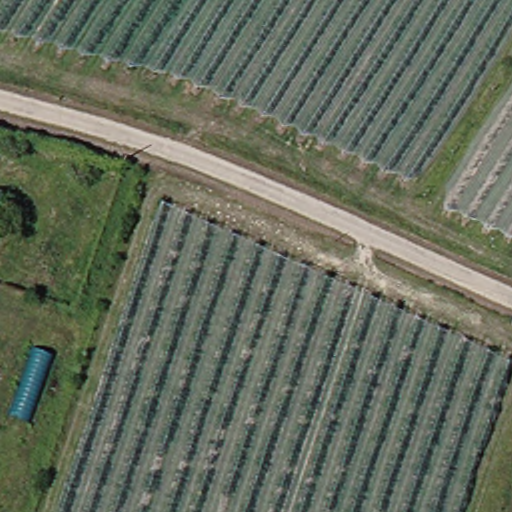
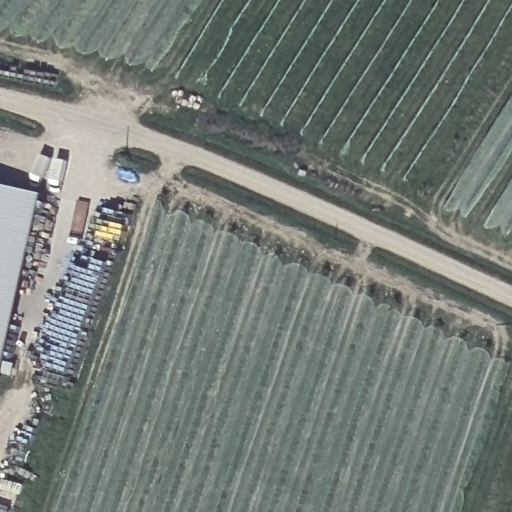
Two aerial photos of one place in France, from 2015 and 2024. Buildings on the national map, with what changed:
new [(46,194),(3,375),(0,374),(0,184),(46,194)]

